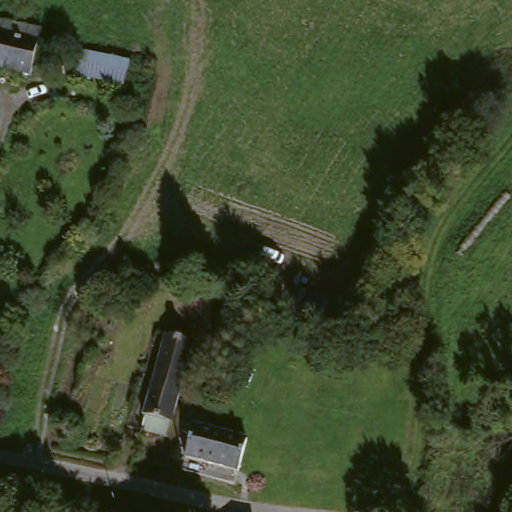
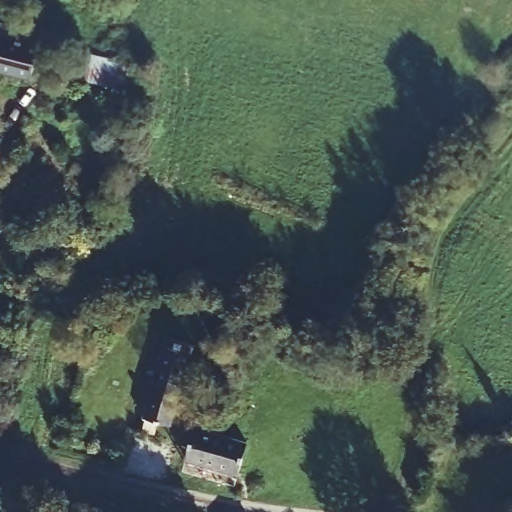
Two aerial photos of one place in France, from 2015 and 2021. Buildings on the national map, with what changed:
unchanged [(18,31),(19,32),(40,37),(31,85),(0,77),(0,27),(10,30),(18,31)]
unchanged [(104,101),(94,99),(55,90),(59,74),(53,72),(60,42),(80,47),(117,55),(128,57),(133,59),(123,105),(104,101)]
unchanged [(150,440),(149,421),(155,339),(188,342),(182,424),(180,442),(150,440)]
unchanged [(234,481),(187,463),(197,436),(244,453),(234,481)]

